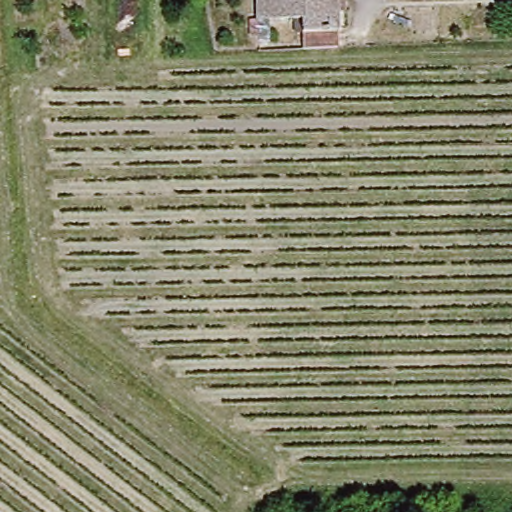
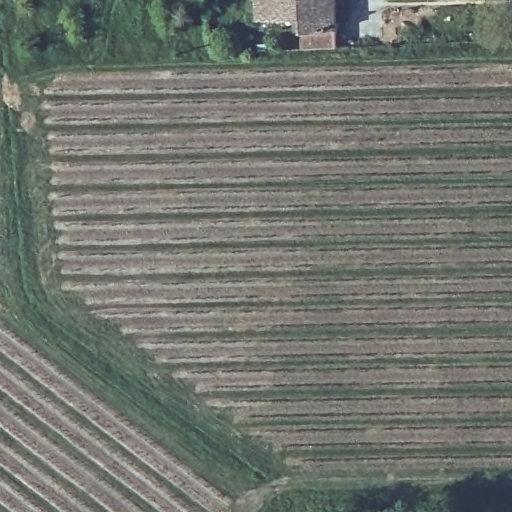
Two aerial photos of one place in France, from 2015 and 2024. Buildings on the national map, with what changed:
unchanged [(298,31),(298,18),(254,19),(253,0),(331,0),(332,29),(298,31)]

